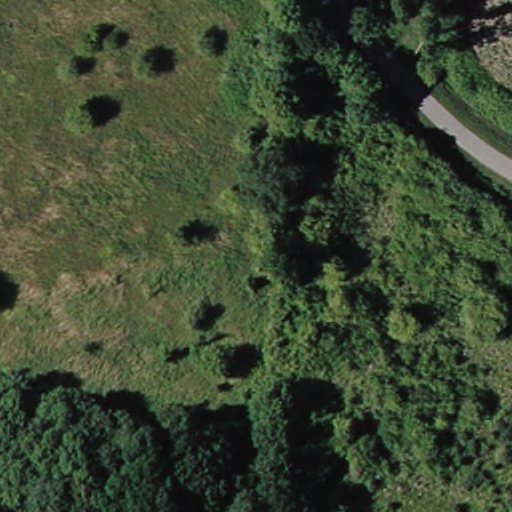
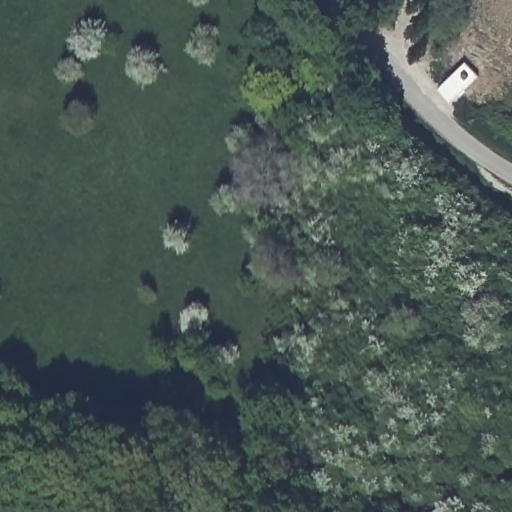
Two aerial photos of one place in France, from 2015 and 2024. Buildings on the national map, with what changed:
[]

